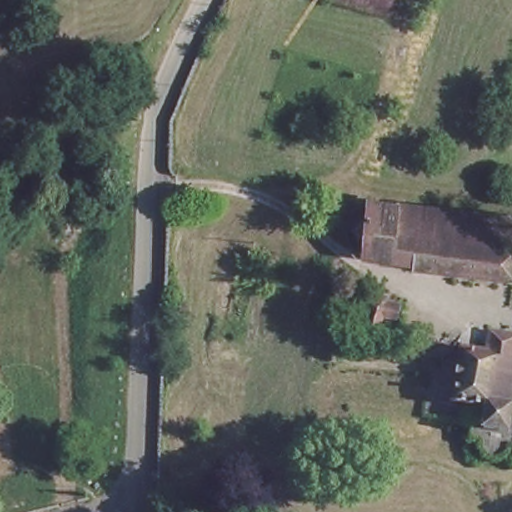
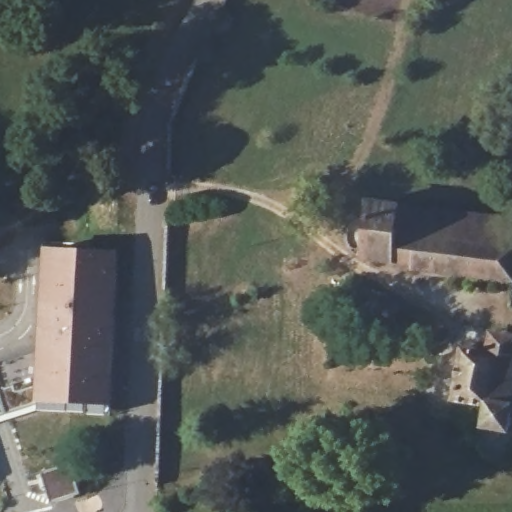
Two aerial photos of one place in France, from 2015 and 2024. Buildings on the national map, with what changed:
unchanged [(512,221),(512,277),(414,267),(414,261),(364,256),(369,204),(512,221)]
new [(47,251),(116,255),(110,405),(45,402),(7,413),(0,392),(0,360),(43,343),(47,251)]
unchanged [(409,307),(408,316),(396,314),(395,326),(382,322),(384,299),(409,307)]
unchanged [(510,399),(512,400),(512,436),(507,447),(500,451),(489,450),(485,447),(480,441),(479,436),(479,431),(470,430),(470,412),(454,410),(461,342),(488,345),(490,322),(502,324),(512,326),(512,375),(510,399)]

